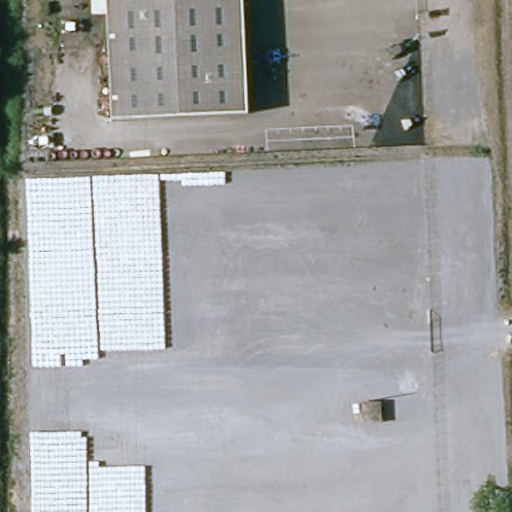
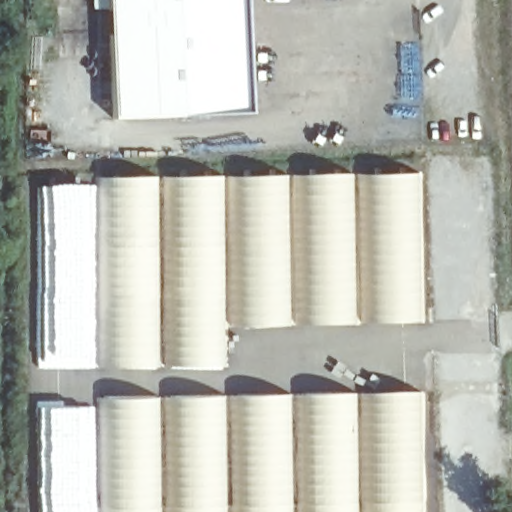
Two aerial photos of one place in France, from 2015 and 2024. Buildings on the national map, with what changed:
unchanged [(108,0),(246,0),(246,9),(109,13),(108,0)]
unchanged [(109,13),(246,9),(248,109),(112,111),(109,13)]
new [(221,325),(222,366),(104,367),(105,178),(412,172),(416,321),(221,325)]
new [(34,230),(38,229),(35,205),(40,186),(91,185),(95,367),(36,368),(34,230)]
demolished [(394,224),(394,238),(405,238),(404,255),(394,256),(396,302),(377,303),(369,227),(394,224)]
demolished [(240,405),(233,408),(224,410),(215,409),(205,406),(195,400),(193,396),(185,384),(184,372),(185,361),(190,351),(197,344),(204,339),(212,336),(222,335),(231,336),(239,340),(248,346),(254,355),(258,365),(258,380),(251,394),(249,399),(240,405)]
demolished [(295,374),(298,384),(297,394),(290,401),(280,402),(272,399),(269,394),(265,388),(267,380),(269,374),(277,368),(290,368),(295,374)]
demolished [(348,387),(349,410),(329,411),(328,387),(348,387)]
new [(422,512),(104,512),(103,398),(418,393),(422,512)]
new [(46,509),(38,509),(36,397),(94,396),(95,512),(46,512),(46,509)]
demolished [(202,506),(199,425),(366,421),(367,500),(202,506)]

